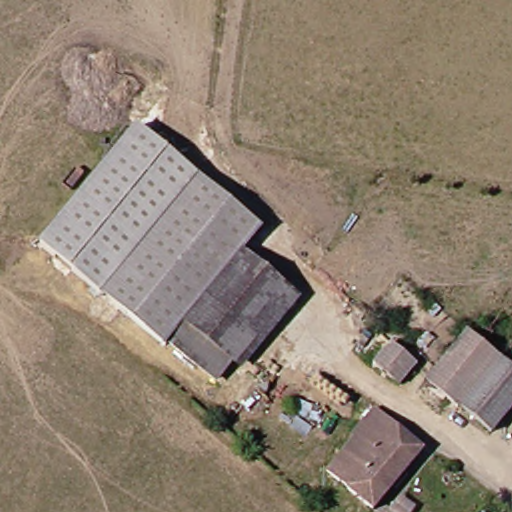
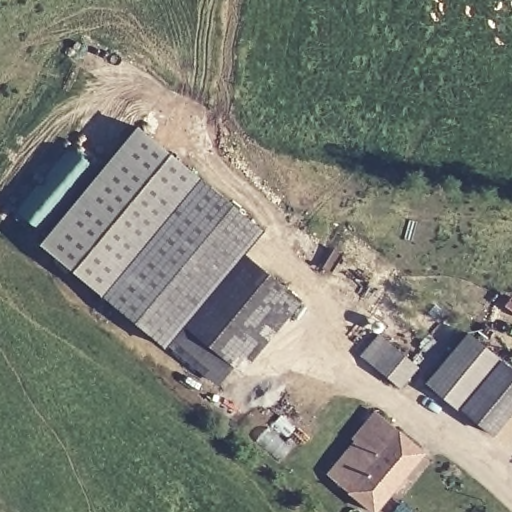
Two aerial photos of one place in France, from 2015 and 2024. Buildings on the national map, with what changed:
unchanged [(188,225),(99,178),(140,130),(206,184),(188,225)]
unchanged [(144,323),(46,242),(99,178),(188,225),(144,323)]
unchanged [(157,333),(144,323),(188,225),(206,184),(219,195),(210,216),(157,333)]
unchanged [(246,258),(172,346),(157,333),(210,216),(219,195),(266,234),(246,258)]
unchanged [(246,258),(292,296),(215,384),(172,346),(246,258)]
unchanged [(507,361),(468,412),(445,393),(436,403),(425,391),(473,333),(507,361)]
unchanged [(421,365),(409,384),(385,371),(378,381),(363,372),(380,341),(421,365)]
unchanged [(512,366),(512,423),(502,436),(497,433),(468,412),(507,361),(512,366)]
unchanged [(353,436),(378,410),(424,453),(375,512),(372,512),(329,475),(359,442),(353,436)]

